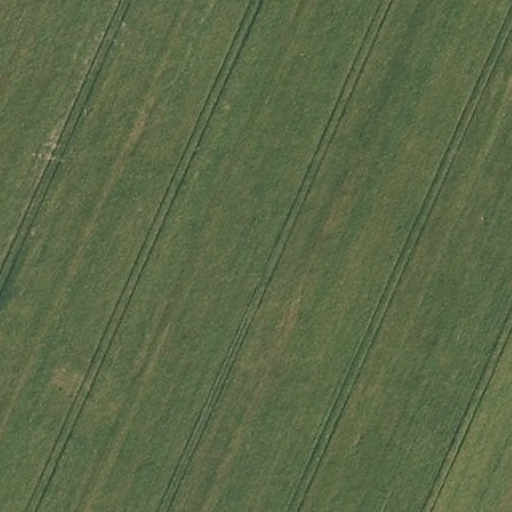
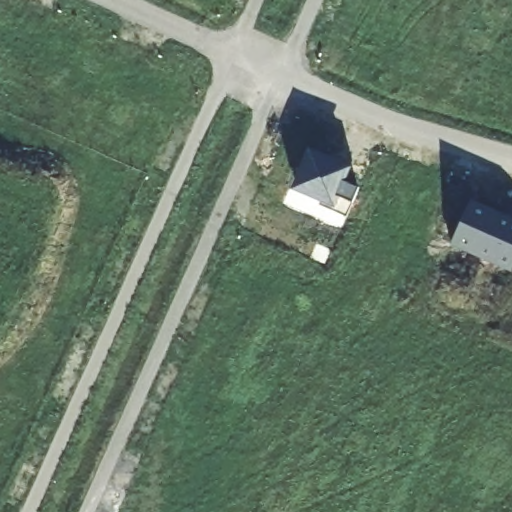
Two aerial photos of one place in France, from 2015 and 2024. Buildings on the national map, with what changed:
new [(308,147),(351,165),(345,181),(357,187),(352,200),(345,215),(333,207),(290,189),(308,147)]
new [(512,218),(512,269),(511,271),(450,245),(471,200),(512,218)]

